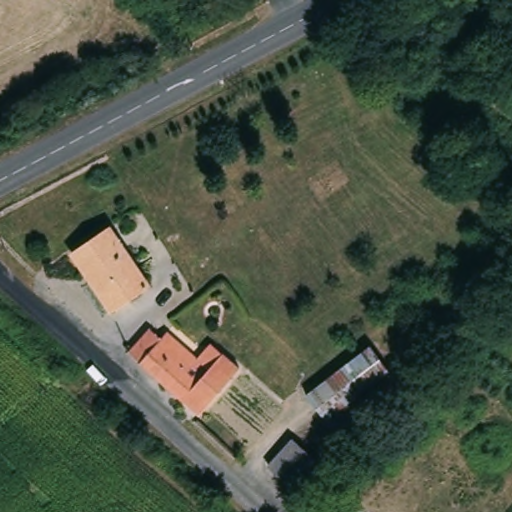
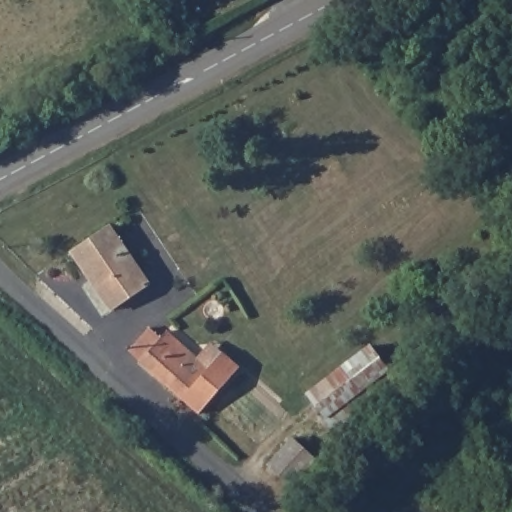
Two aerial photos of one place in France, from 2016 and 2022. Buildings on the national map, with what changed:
unchanged [(112,226),(149,285),(113,308),(75,250),(112,226)]
unchanged [(146,332),(159,342),(169,331),(210,371),(223,357),(240,373),(199,416),(130,350),(146,332)]
unchanged [(303,400),(365,350),(384,373),(323,425),(303,400)]
unchanged [(384,373),(399,391),(346,451),(323,425),(384,373)]
unchanged [(289,488),(279,478),(252,453),(277,426),(302,450),(314,461),(289,488)]

